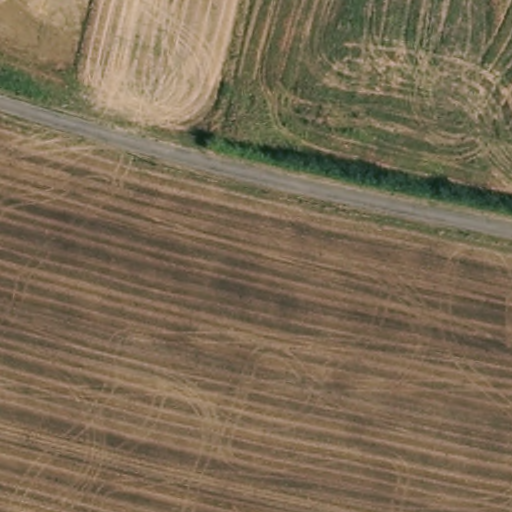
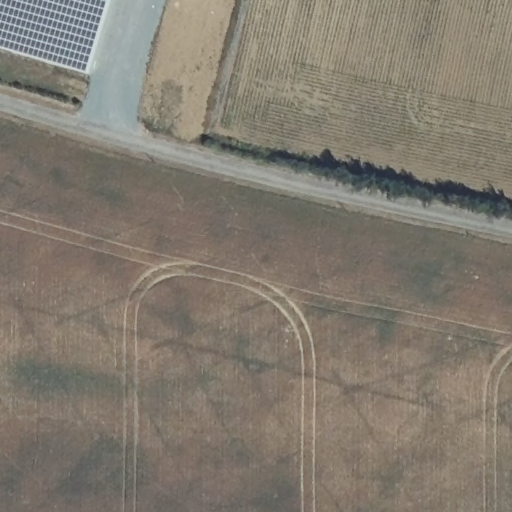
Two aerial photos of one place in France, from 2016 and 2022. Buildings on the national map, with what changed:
new [(0,0),(113,0),(90,76),(0,49),(0,0)]

